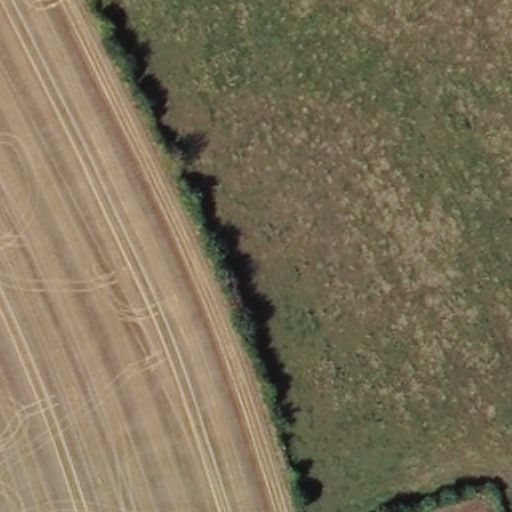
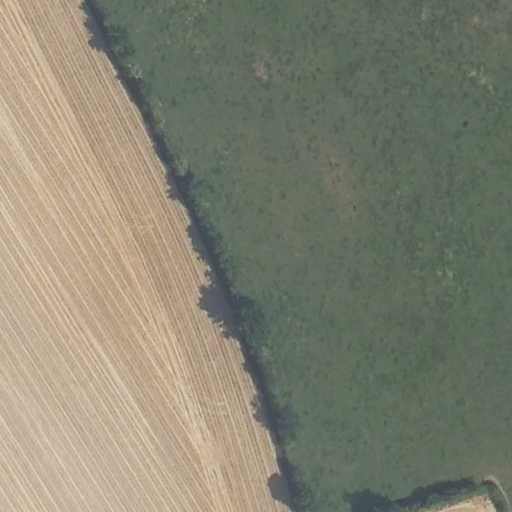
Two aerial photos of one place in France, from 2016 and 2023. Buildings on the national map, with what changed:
[]

